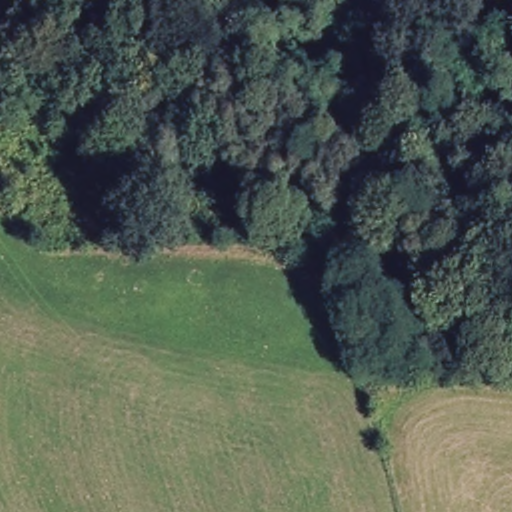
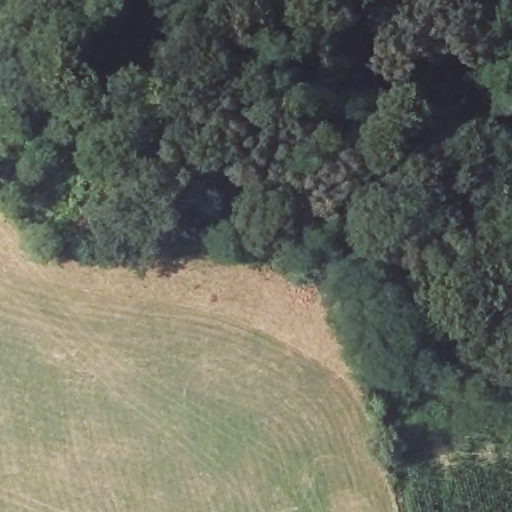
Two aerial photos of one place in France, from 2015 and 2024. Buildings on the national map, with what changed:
[]

